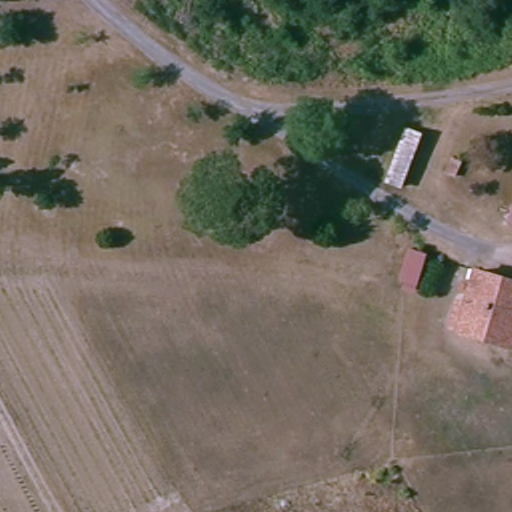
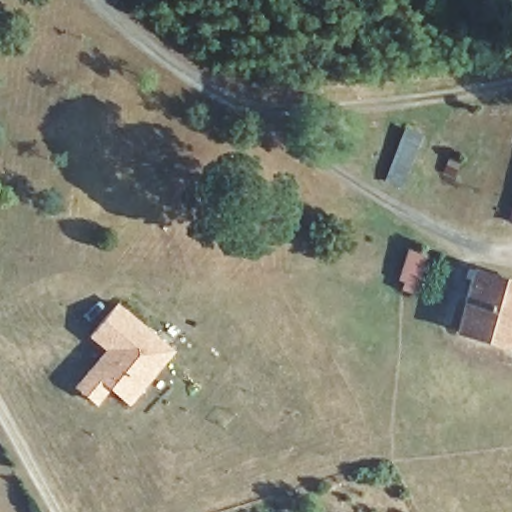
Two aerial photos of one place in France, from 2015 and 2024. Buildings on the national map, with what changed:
unchanged [(396,254),(407,226),(421,231),(410,259),(396,254)]
unchanged [(458,300),(468,304),(481,272),(512,284),(512,347),(511,351),(458,330),(448,326),(458,300)]
new [(174,348),(129,405),(109,389),(96,406),(73,387),(105,350),(88,336),(117,302),(174,348)]

